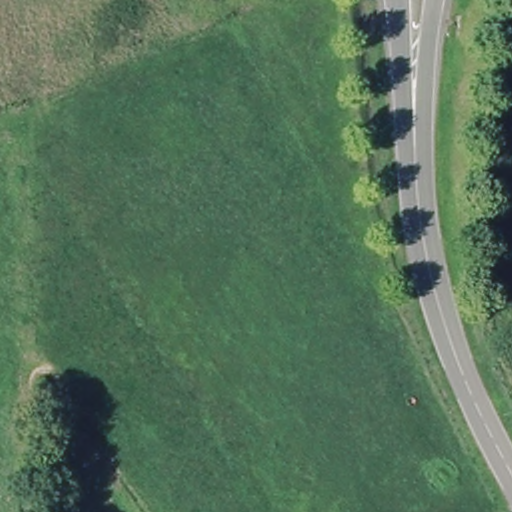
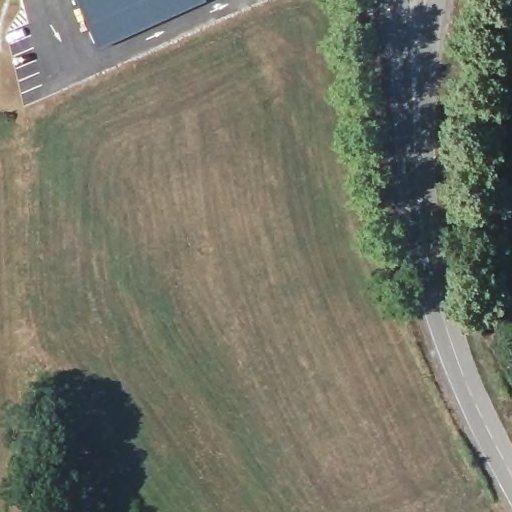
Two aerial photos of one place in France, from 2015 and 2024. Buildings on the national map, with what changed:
new [(206,1),(97,49),(76,0),(206,0),(206,1)]

